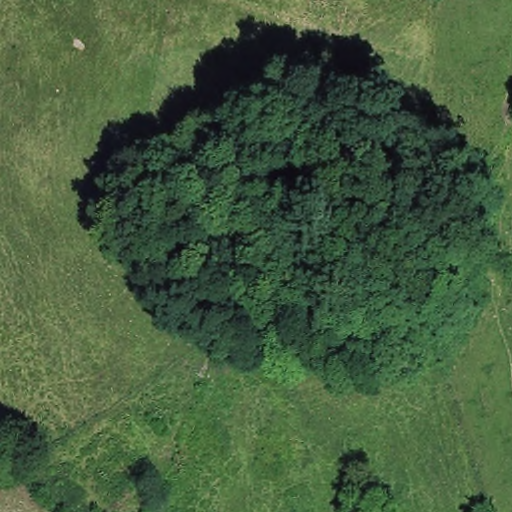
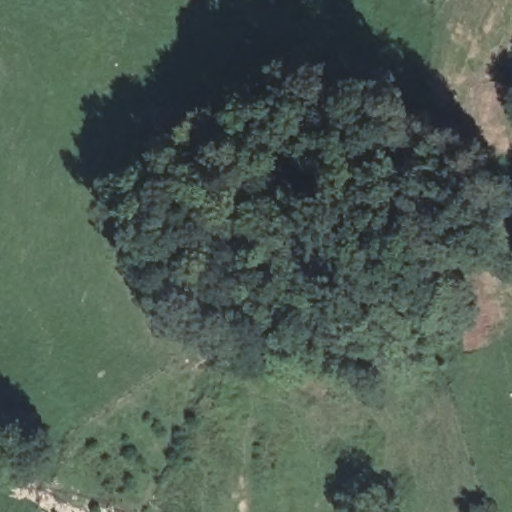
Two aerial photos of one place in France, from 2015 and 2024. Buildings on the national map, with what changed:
[]

